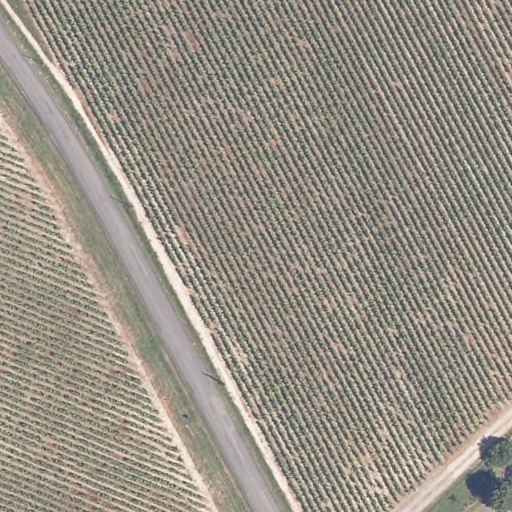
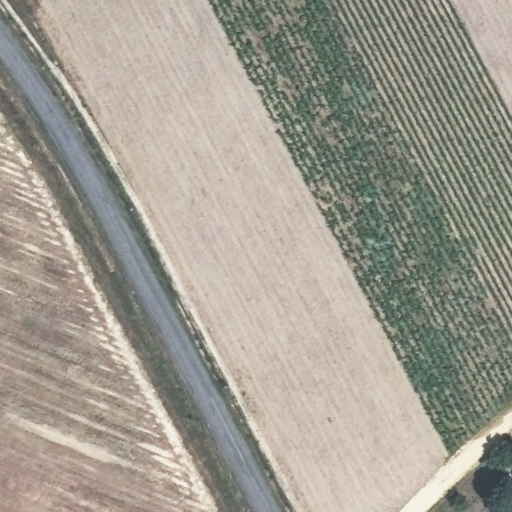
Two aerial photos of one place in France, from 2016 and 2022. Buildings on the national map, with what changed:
[]

